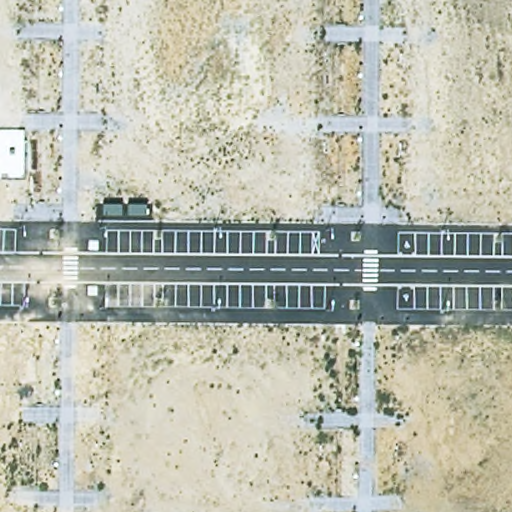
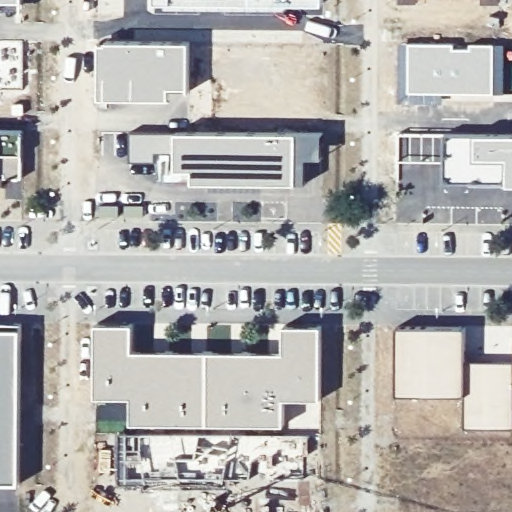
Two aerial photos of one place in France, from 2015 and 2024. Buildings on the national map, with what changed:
new [(25,5),(0,5),(0,0),(25,0),(25,5)]
new [(251,6),(191,7),(153,5),(153,0),(251,0),(251,6)]
new [(251,0),(325,0),(325,7),(251,6),(251,0)]
new [(99,41),(187,42),(187,88),(170,88),(169,100),(99,99),(99,41)]
new [(492,94),(408,92),(408,44),(451,45),(452,50),(470,50),(470,45),(492,45),(492,94)]
new [(22,179),(0,179),(0,130),(22,130),(22,179)]
new [(130,131),(175,130),(175,155),(158,155),(158,161),(130,161),(130,131)]
new [(175,155),(175,130),(298,130),(324,131),(324,159),(302,159),(302,179),(300,183),(300,184),(191,183),(191,180),(159,180),(158,161),(158,155),(175,155)]
new [(445,133),(445,160),(400,161),(399,133),(445,133)]
new [(512,134),(512,186),(507,186),(506,184),(445,182),(445,160),(445,133),(512,134)]
new [(21,324),(20,330),(20,483),(0,483),(0,323),(21,324)]
new [(95,397),(95,325),(132,325),(132,351),(282,352),(283,325),(321,326),(320,399),(284,399),(284,425),(131,423),(132,398),(95,397)]
new [(512,361),(512,430),(463,430),(463,395),(397,394),(397,327),(464,327),(463,360),(512,361)]

